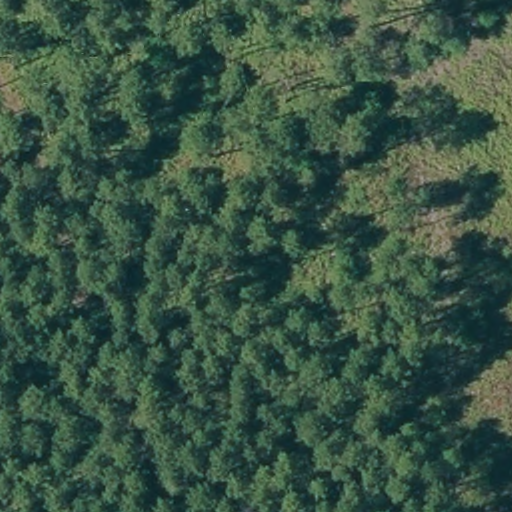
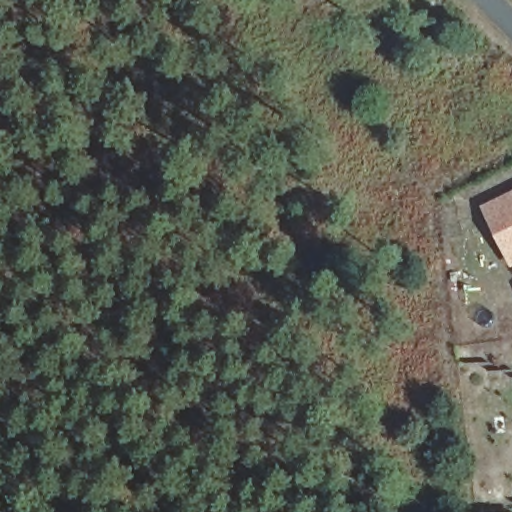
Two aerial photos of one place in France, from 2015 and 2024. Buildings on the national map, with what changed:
new [(483,207),(512,193),(512,263),(510,263),(483,207)]

